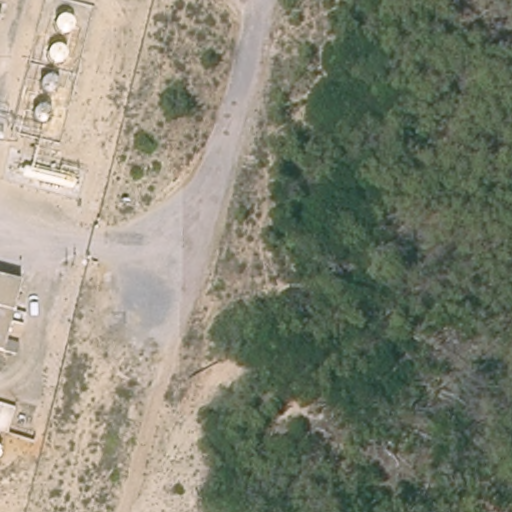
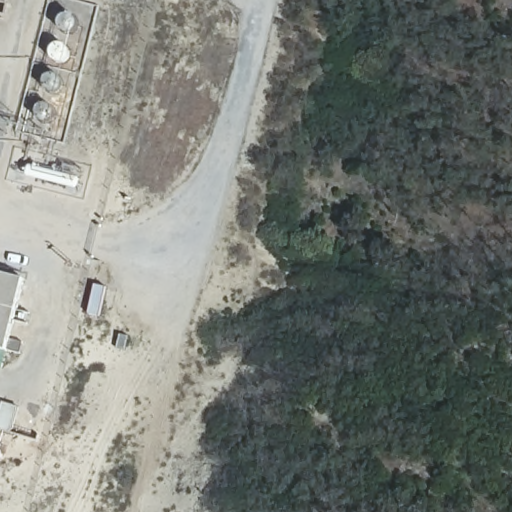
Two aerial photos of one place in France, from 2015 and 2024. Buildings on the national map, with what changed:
unchanged [(0,272),(25,277),(7,348),(0,346),(0,272)]

